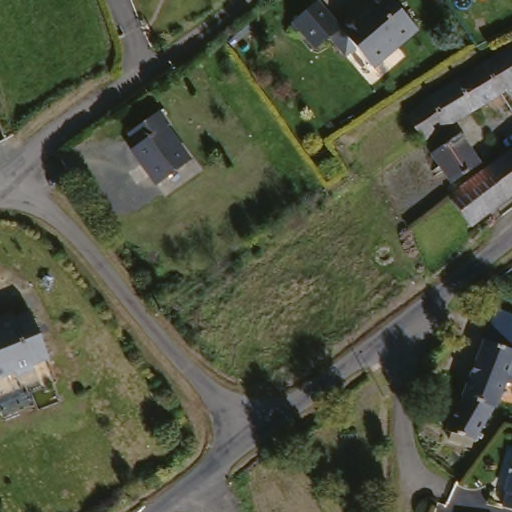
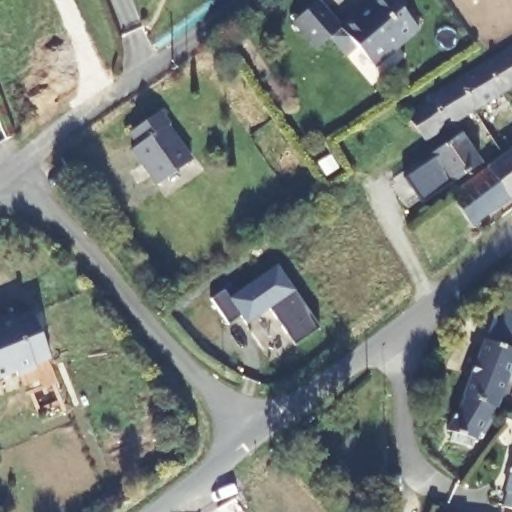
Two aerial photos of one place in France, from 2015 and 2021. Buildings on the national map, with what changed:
unchanged [(417,28),(399,40),(402,45),(398,47),(371,66),(356,43),(345,51),(331,31),(316,42),(295,12),(311,0),(327,0),(343,22),(364,7),(370,8),(382,0),(397,0),(417,28)]
unchanged [(512,40),(512,47),(511,46),(509,42),(512,40)]
unchanged [(491,53),(509,42),(511,46),(512,47),(512,82),(502,89),(483,59),(491,53)]
unchanged [(483,59),(502,89),(476,104),(456,74),(483,59)]
unchanged [(452,76),(456,74),(476,104),(425,135),(410,112),(426,91),(452,76)]
unchanged [(131,141),(136,137),(128,129),(160,104),(195,156),(161,180),(131,141)]
unchanged [(457,133),(476,162),(446,181),(427,152),(457,133)]
unchanged [(499,156),(512,146),(512,193),(470,225),(447,197),(499,156)]
new [(239,316),(228,325),(211,299),(223,290),(229,297),(276,265),(294,290),(319,328),(294,346),(268,310),(247,326),(239,316)]
unchanged [(31,357),(33,363),(16,370),(14,363),(0,368),(0,314),(14,310),(16,315),(33,308),(48,352),(31,357)]
unchanged [(512,346),(512,382),(504,407),(500,406),(482,437),(457,429),(477,396),(472,393),(494,338),(512,346)]
unchanged [(506,500),(512,486),(509,485),(512,478),(512,503),(506,500)]

